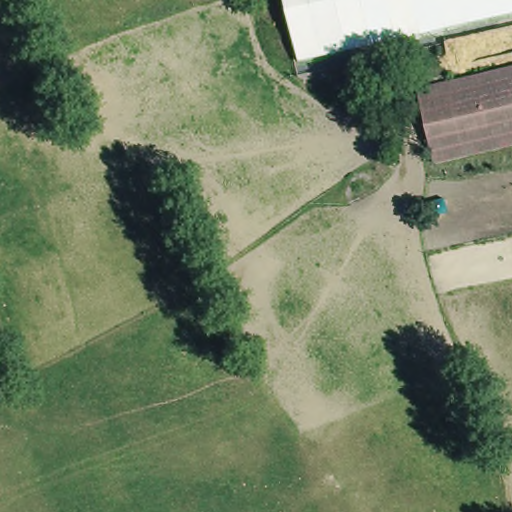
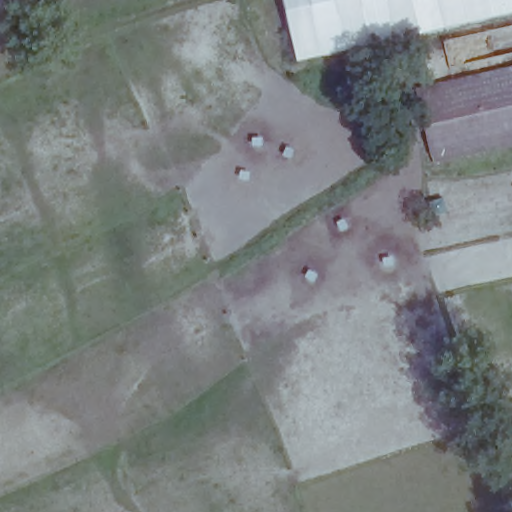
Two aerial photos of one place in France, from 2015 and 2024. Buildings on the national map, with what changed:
unchanged [(512,29),(512,59),(452,71),(447,40),(301,75),(283,0),(512,0),(512,26),(511,26),(512,29)]
unchanged [(512,68),(512,146),(435,163),(418,89),(512,68)]

